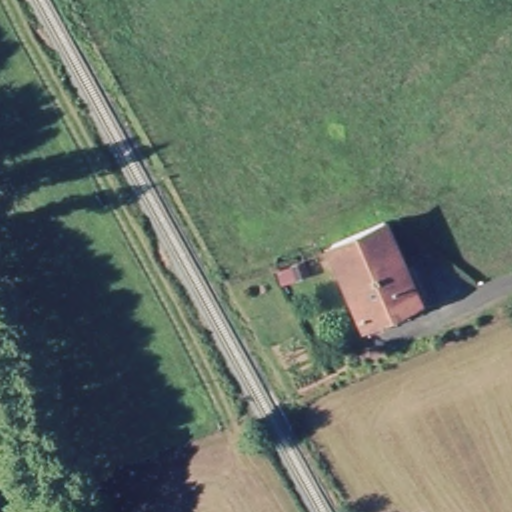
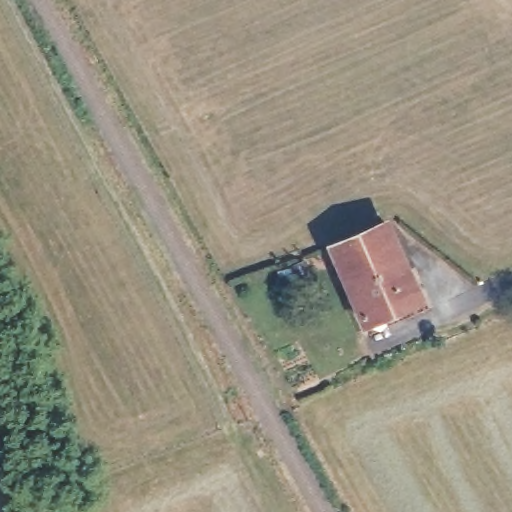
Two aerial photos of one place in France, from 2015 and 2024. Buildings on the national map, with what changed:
unchanged [(343,280),(322,241),(352,228),(379,216),(400,256),(389,261),(404,265),(414,287),(421,303),(394,315),(367,328),(359,312),(343,280)]

